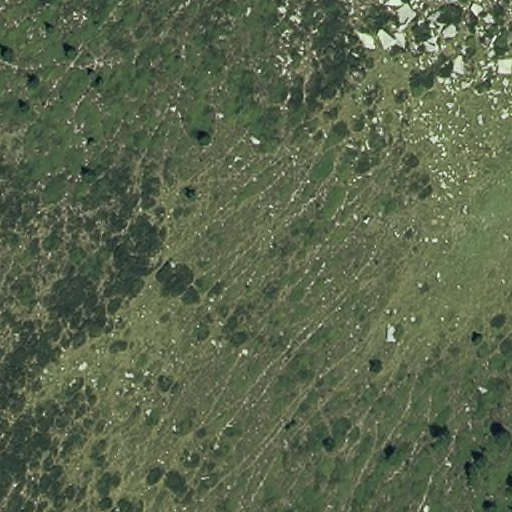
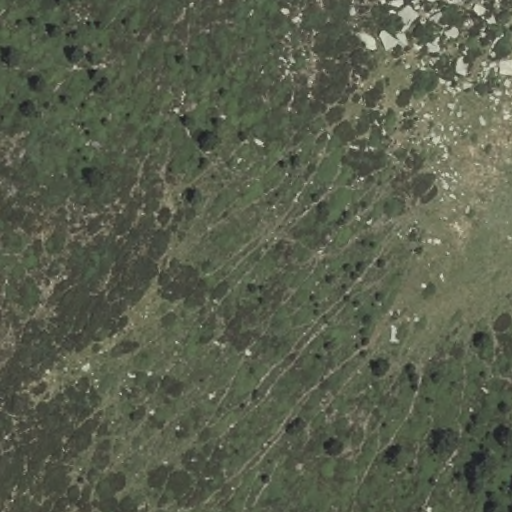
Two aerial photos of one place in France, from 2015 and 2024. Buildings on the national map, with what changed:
[]

